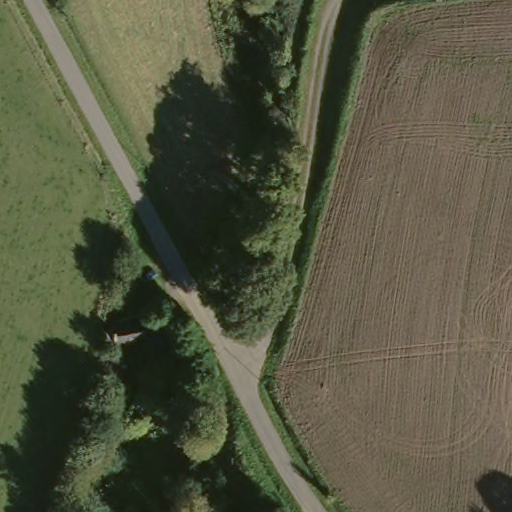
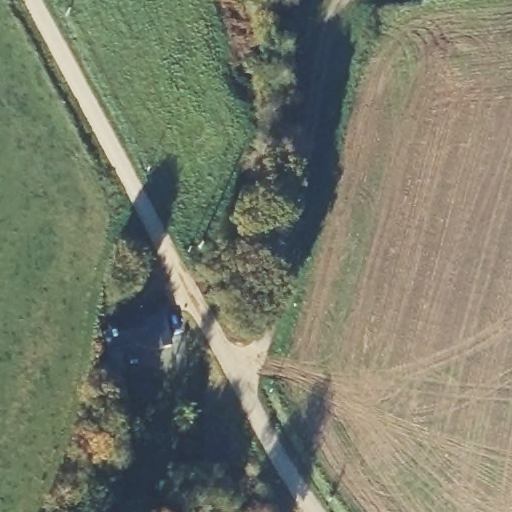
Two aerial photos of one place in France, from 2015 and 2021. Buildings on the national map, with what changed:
unchanged [(140,322),(141,346),(108,349),(106,324),(140,322)]
unchanged [(96,358),(111,359),(109,384),(91,382),(96,358)]

